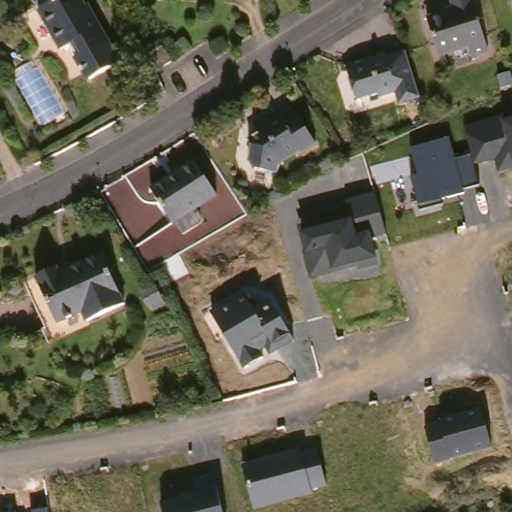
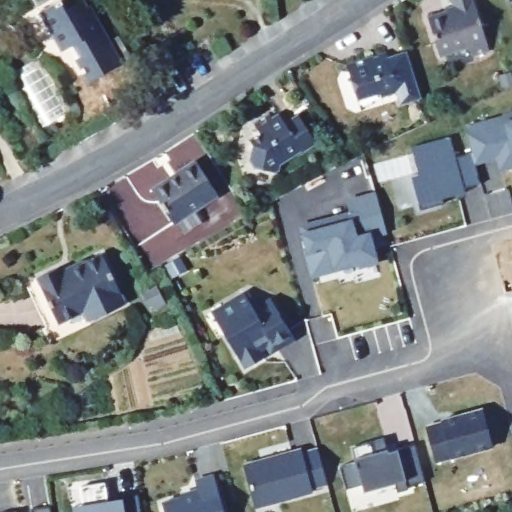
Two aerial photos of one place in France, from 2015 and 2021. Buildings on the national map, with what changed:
unchanged [(68,47),(47,3),(54,0),(71,0),(72,3),(78,0),(89,0),(90,3),(96,0),(124,60),(92,76),(77,43),(68,47)]
unchanged [(497,48),(480,54),(478,45),(448,54),(436,15),(462,6),(460,0),(482,0),(497,48)]
unchanged [(410,47),(416,65),(424,92),(404,99),(400,87),(384,92),(383,89),(360,96),(349,61),(389,49),(391,54),(410,47)]
unchanged [(161,50),(170,63),(156,71),(148,58),(161,50)]
unchanged [(306,112),(324,140),(309,150),(308,147),(288,161),(286,171),(263,167),(257,157),(251,147),(259,142),(256,137),(267,130),(260,121),(276,111),(279,115),(286,111),(292,120),(306,112)]
unchanged [(410,175),(419,174),(412,146),(451,137),(455,156),(472,152),(465,125),(504,115),(505,120),(512,118),(512,168),(499,172),(496,160),(474,165),(480,185),(464,189),(464,191),(442,198),(443,202),(419,209),(410,175)]
unchanged [(187,230),(178,215),(175,217),(153,184),(155,182),(198,155),(219,189),(196,204),(205,217),(187,230)]
unchanged [(297,226),(337,216),(335,201),(375,190),(387,234),(372,237),(379,265),(357,270),(356,267),(311,279),(297,226)]
unchanged [(106,250),(130,300),(95,319),(88,308),(61,321),(47,275),(106,250)]
unchanged [(209,310),(251,287),(256,294),(265,288),(294,340),(271,353),(266,346),(260,350),(264,357),(243,368),(209,310)]
unchanged [(423,426),(480,408),(492,447),(434,463),(423,426)]
new [(355,464),(351,449),(383,440),(387,454),(414,446),(424,483),(406,488),(407,491),(396,494),(393,485),(362,493),(361,486),(345,491),(339,468),(355,464)]
unchanged [(243,465),(316,445),(328,486),(254,508),(243,465)]
new [(79,486),(103,483),(105,500),(137,495),(139,512),(73,512),(71,505),(81,503),(79,486)]
unchanged [(215,486),(224,512),(163,512),(160,502),(215,486)]
unchanged [(49,506),(50,512),(31,512),(31,510),(49,506)]
unchanged [(18,512),(14,512),(17,511),(18,512)]

